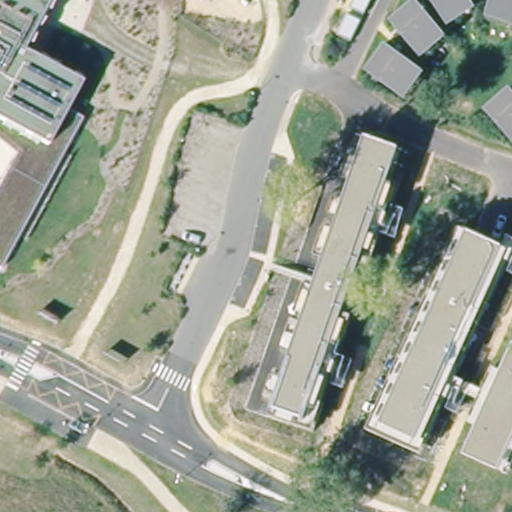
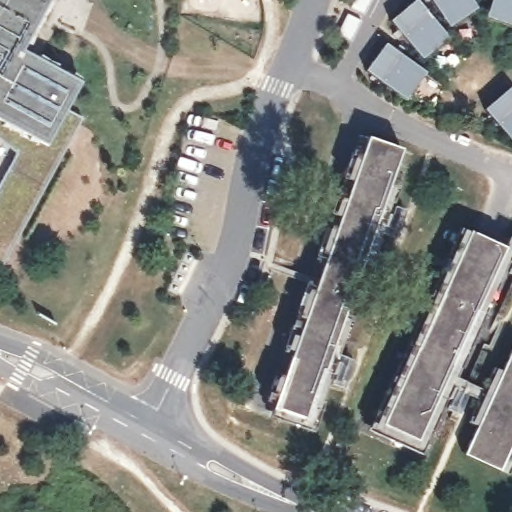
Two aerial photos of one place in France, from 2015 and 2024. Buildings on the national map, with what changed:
unchanged [(81,84),(71,106),(84,115),(17,247),(2,269),(0,267),(0,185),(17,154),(0,139),(0,0),(66,0),(36,60),(81,84)]
unchanged [(416,50),(392,21),(416,0),(418,0),(442,29),(416,50)]
unchanged [(432,0),(470,0),(444,18),(432,0)]
unchanged [(491,11),(495,0),(512,0),(512,18),(491,11)]
unchanged [(403,98),(372,76),(392,48),(423,71),(403,98)]
unchanged [(491,115),(512,96),(512,138),(491,115)]
unchanged [(404,149),(310,428),(272,416),(366,138),(404,149)]
unchanged [(512,252),(421,447),(374,429),(466,232),(512,252)]
unchanged [(502,471),(465,456),(512,350),(512,448),(502,471)]

